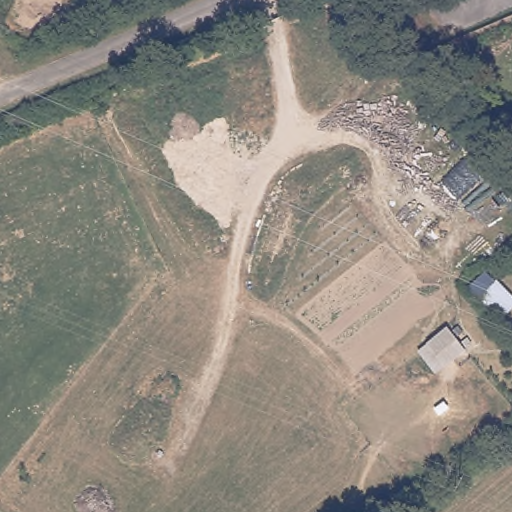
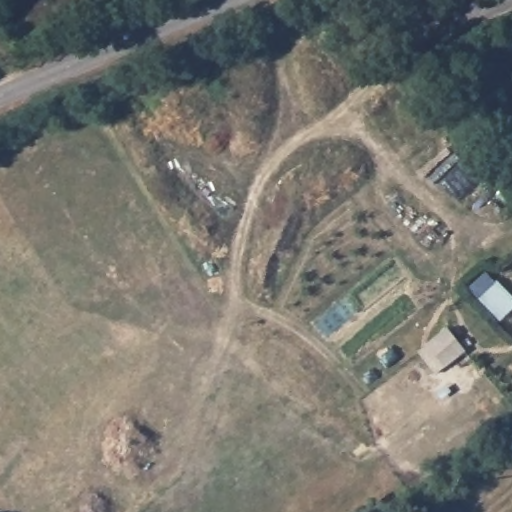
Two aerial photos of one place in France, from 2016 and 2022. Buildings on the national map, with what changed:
unchanged [(437,373),(418,350),(448,324),(468,349),(437,373)]

